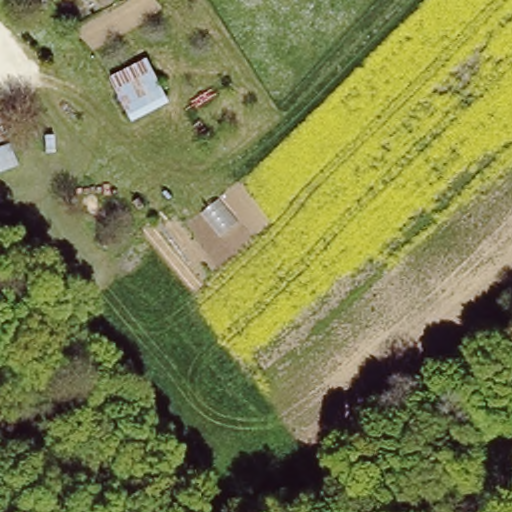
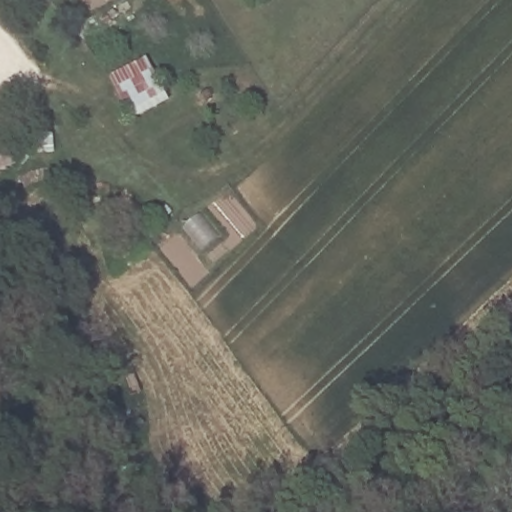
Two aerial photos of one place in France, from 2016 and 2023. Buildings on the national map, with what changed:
unchanged [(112,74),(149,56),(170,99),(132,117),(112,74)]
unchanged [(485,453),(503,417),(512,423),(512,469),(485,453)]

